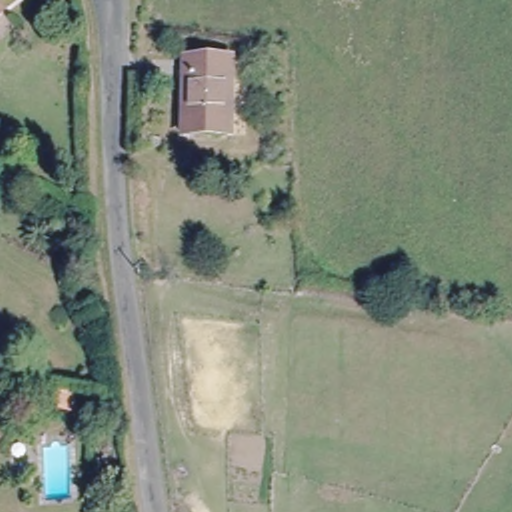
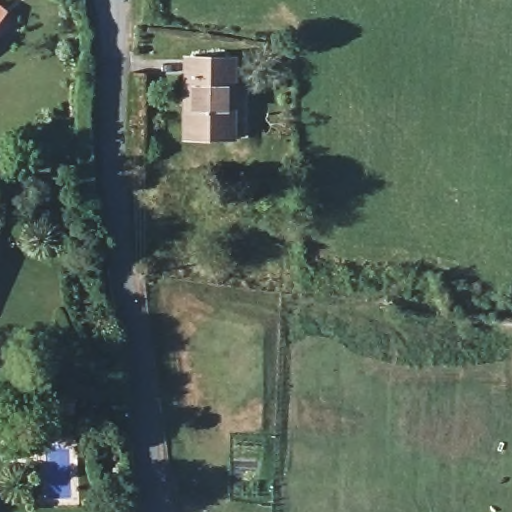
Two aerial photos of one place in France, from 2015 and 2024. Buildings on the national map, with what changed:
unchanged [(3,13),(0,16),(0,11),(3,13)]
unchanged [(233,138),(183,137),(185,58),(234,59),(233,138)]
unchanged [(74,399),(72,412),(51,408),(54,396),(74,399)]

